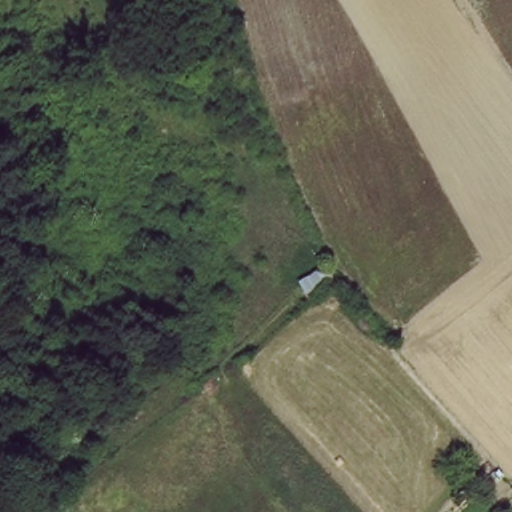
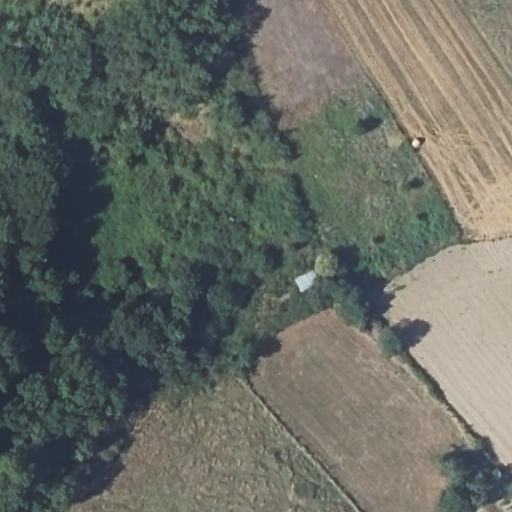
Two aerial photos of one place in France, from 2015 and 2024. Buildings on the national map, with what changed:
unchanged [(318,262),(330,285),(306,301),(295,281),(318,262)]

